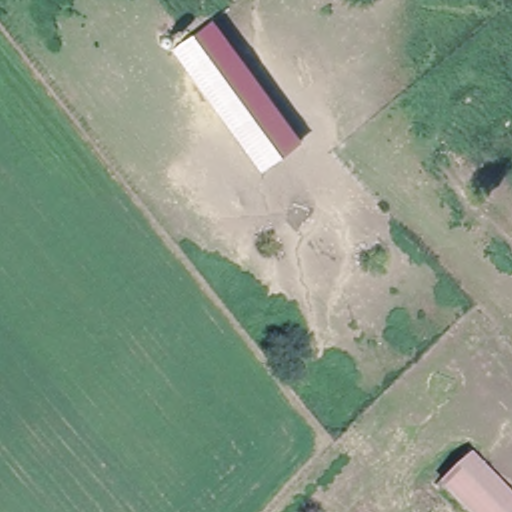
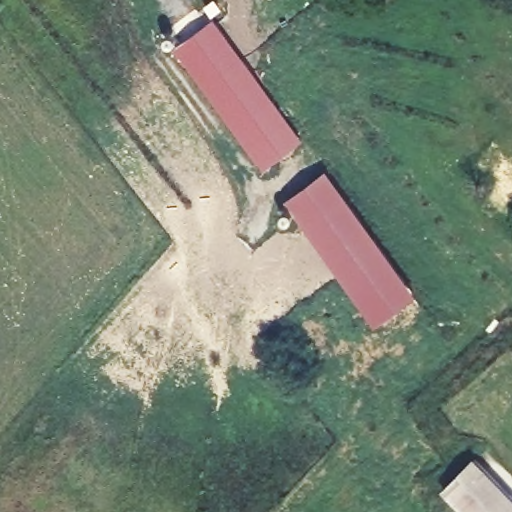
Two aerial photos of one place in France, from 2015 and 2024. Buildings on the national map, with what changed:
unchanged [(307,136),(272,165),(172,54),(209,24),(307,136)]
new [(417,293),(378,324),(285,198),(326,169),(417,293)]
unchanged [(512,493),(512,512),(473,512),(444,482),(476,453),(512,493)]

